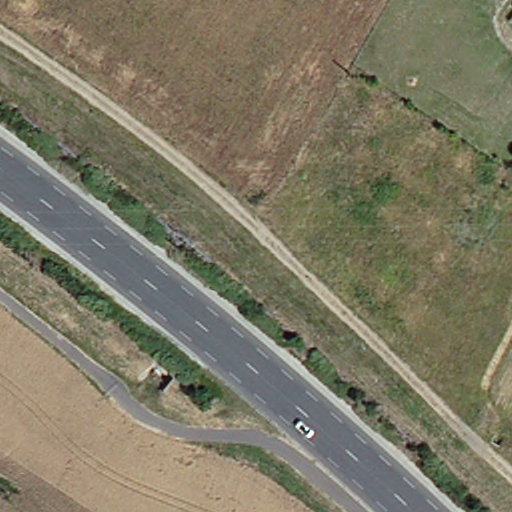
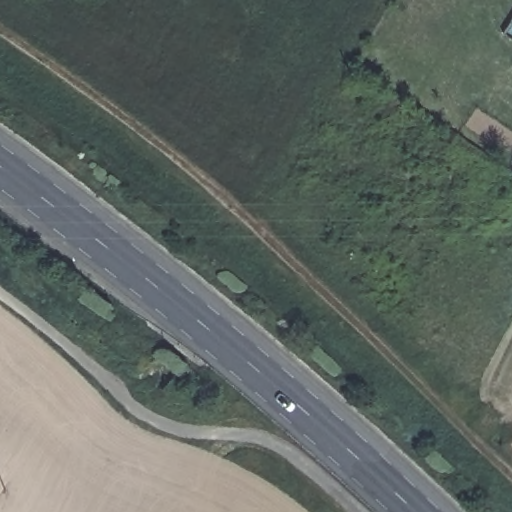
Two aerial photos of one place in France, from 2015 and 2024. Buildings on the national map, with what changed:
unchanged [(501,19),(512,3),(512,26),(501,19)]

